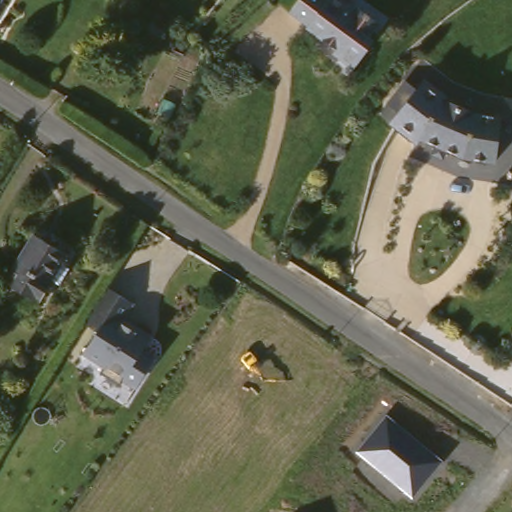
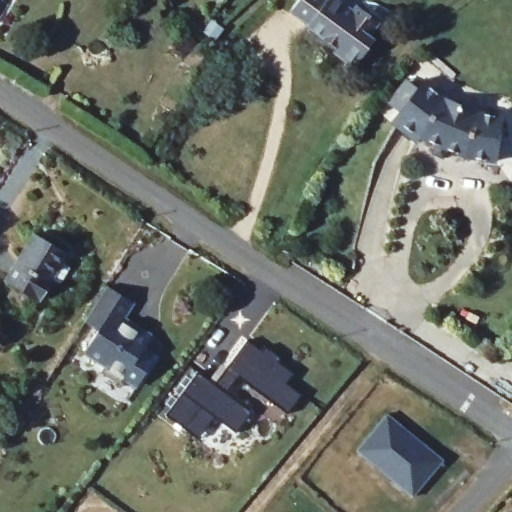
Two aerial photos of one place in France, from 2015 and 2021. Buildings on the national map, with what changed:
unchanged [(0,3),(0,0),(1,1),(0,3)]
unchanged [(365,2),(386,21),(371,39),(376,43),(357,65),(341,50),(341,44),(314,19),(315,17),(299,1),(300,0),(353,0),(361,8),(365,2)]
unchanged [(435,85),(432,89),(461,111),(488,114),(484,163),(450,160),(412,130),(409,135),(383,115),(415,69),(435,85)]
unchanged [(48,299),(35,290),(16,279),(43,234),(61,245),(75,255),(48,299)]
unchanged [(113,318),(122,323),(124,319),(142,331),(133,346),(146,354),(131,378),(118,371),(113,379),(93,367),(98,360),(77,348),(90,325),(77,317),(81,309),(83,305),(98,282),(125,299),(113,318)]
new [(196,374),(206,382),(221,364),(225,368),(245,340),(261,351),(263,348),(281,359),(278,362),(294,373),(287,382),(302,394),(288,414),(237,379),(226,392),(251,411),(234,432),(213,419),(197,440),(166,417),(196,374)]
unchanged [(355,452),(388,413),(443,461),(413,498),(355,452)]

